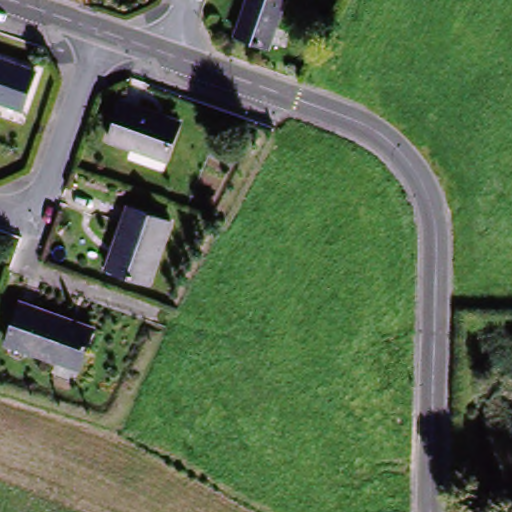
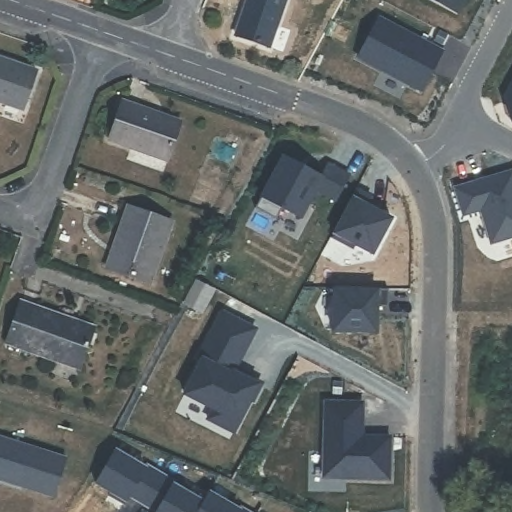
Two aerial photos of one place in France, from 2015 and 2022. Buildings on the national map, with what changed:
unchanged [(251,0),(289,0),(272,48),(238,36),(251,0)]
new [(453,15),(424,0),(461,0),(453,15)]
new [(382,15),(445,50),(425,94),(359,60),(382,15)]
unchanged [(0,63),(36,75),(22,112),(0,105),(0,63)]
new [(509,129),(501,103),(512,83),(512,129),(509,129)]
unchanged [(164,164),(109,145),(121,108),(177,127),(164,164)]
new [(283,158),(321,179),(329,166),(350,178),(336,204),(316,193),(300,221),(282,211),(276,222),(255,210),(283,158)]
new [(512,174),(512,240),(490,246),(480,212),(463,217),(455,190),(512,174)]
new [(367,206),(376,211),(391,220),(390,222),(372,255),(354,245),(352,249),(331,237),(356,190),(371,198),(367,206)]
unchanged [(125,212),(169,229),(146,289),(101,272),(125,212)]
new [(386,306),(375,306),(374,331),(353,331),(353,334),(332,333),(333,288),(387,289),(386,306)]
unchanged [(6,346),(21,305),(95,331),(80,372),(6,346)]
new [(378,306),(378,318),(375,318),(375,306),(378,306)]
new [(239,376),(258,387),(250,401),(248,400),(231,432),(206,419),(211,409),(183,394),(201,360),(197,358),(221,313),(254,330),(230,375),(232,373),(239,376)]
new [(387,480),(322,478),(324,403),(361,404),(361,422),(355,422),(355,437),(389,438),(387,480)]
new [(0,478),(0,474),(0,436),(67,457),(55,495),(0,478)]

